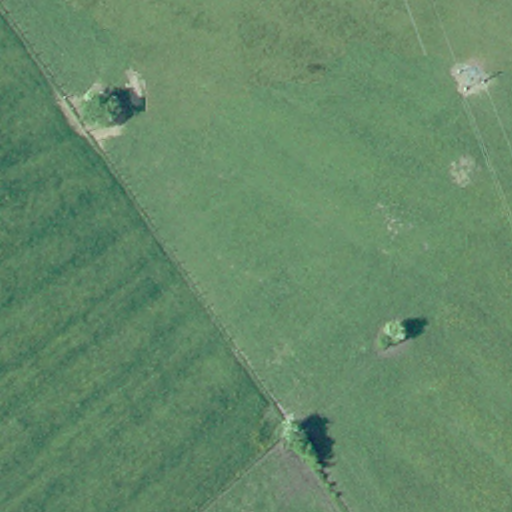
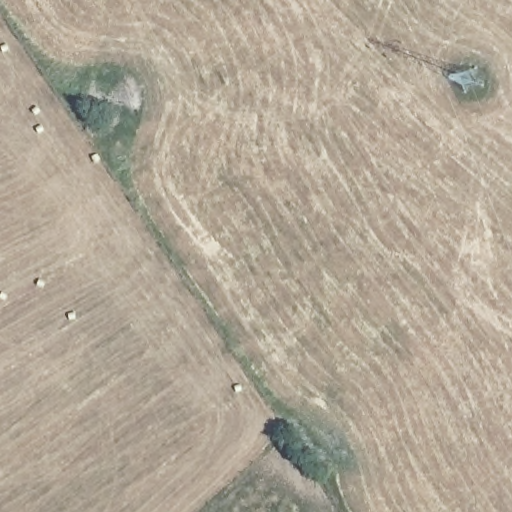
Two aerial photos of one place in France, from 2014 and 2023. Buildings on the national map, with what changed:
unchanged [(116,87),(126,81),(144,110),(134,116),(116,87)]

